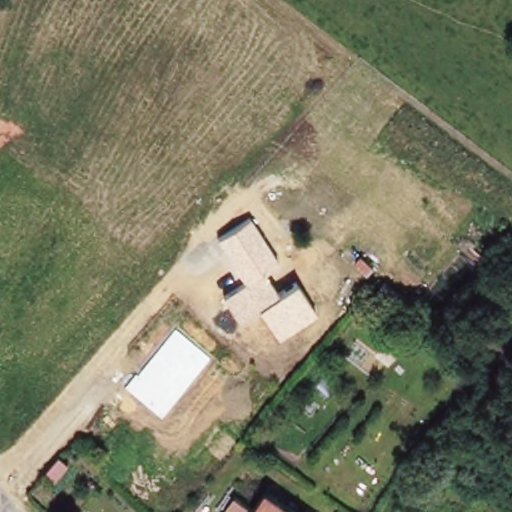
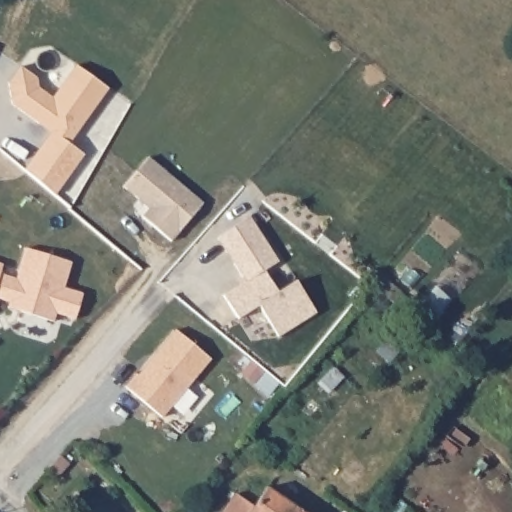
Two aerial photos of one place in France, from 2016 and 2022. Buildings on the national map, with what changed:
new [(38,75),(40,85),(54,95),(78,63),(110,86),(71,141),(85,151),(56,193),(25,167),(52,128),(40,120),(13,101),(10,80),(22,64),(38,75)]
new [(126,185),(150,156),(205,203),(173,240),(144,215),(151,207),(140,198),(141,198),(126,185)]
unchanged [(258,305),(237,318),(224,295),(244,283),(218,238),(251,217),(278,262),(265,271),(278,292),(297,281),(317,315),(278,335),(258,305)]
new [(0,261),(4,262),(1,271),(18,277),(27,246),(72,260),(64,285),(84,292),(76,317),(57,310),(54,319),(22,309),(9,305),(10,299),(0,296),(0,261)]
new [(137,372),(139,373),(177,328),(211,357),(162,416),(126,385),(137,372)]
unchanged [(233,497),(241,502),(247,495),(257,496),(262,499),(267,493),(294,512),(224,512),(233,497)]

